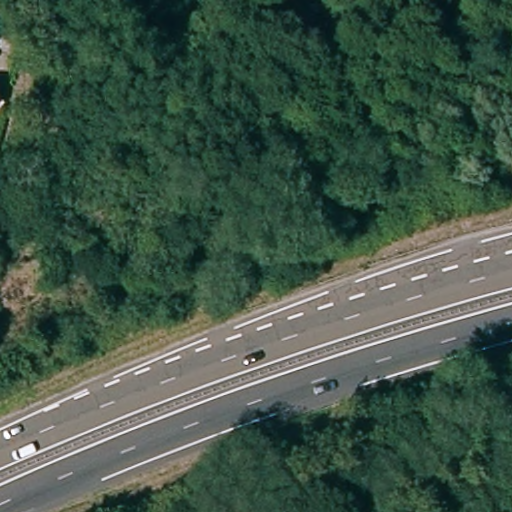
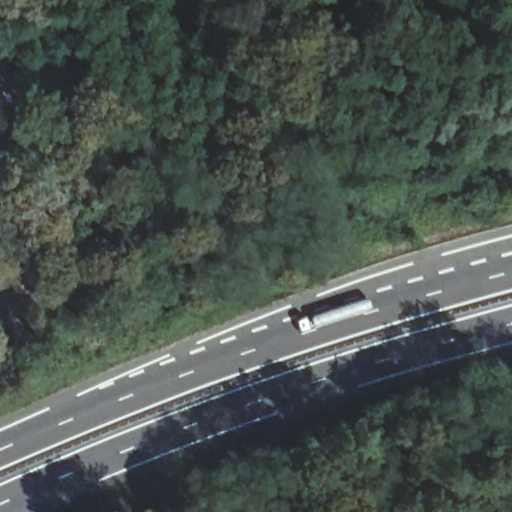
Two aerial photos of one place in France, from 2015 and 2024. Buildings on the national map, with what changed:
unchanged [(10,59),(0,59),(0,38),(10,38),(10,59)]

